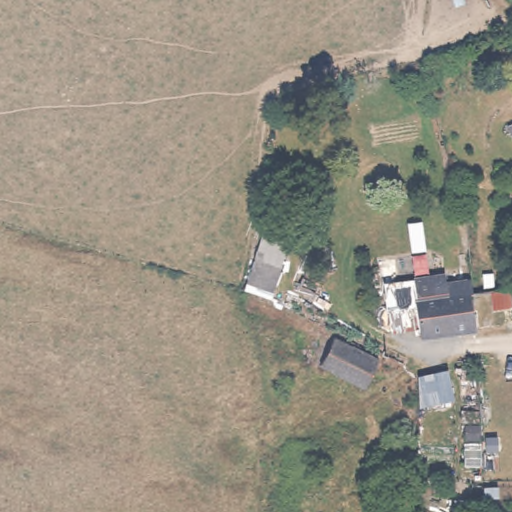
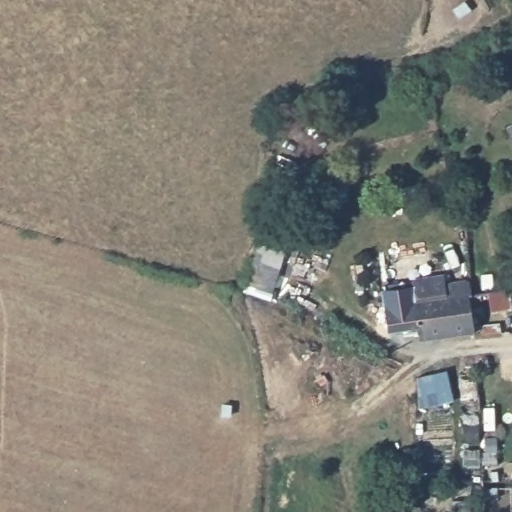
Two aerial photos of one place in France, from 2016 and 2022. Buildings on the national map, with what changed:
unchanged [(299,229),(274,287),(245,275),(269,219),(299,229)]
unchanged [(443,303),(449,340),(417,345),(413,311),(384,315),(382,295),(412,291),(412,287),(412,284),(441,280),(443,303)]
unchanged [(467,300),(512,292),(512,328),(469,336),(449,340),(443,303),(459,301),(467,300)]
unchanged [(489,363),(490,372),(470,375),(469,366),(489,363)]

